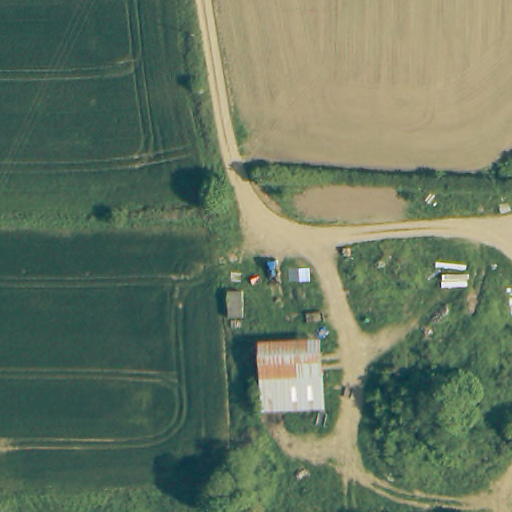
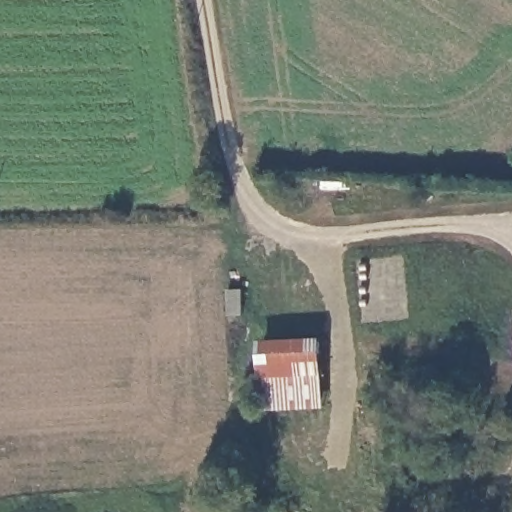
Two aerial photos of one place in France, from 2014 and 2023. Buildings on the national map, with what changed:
unchanged [(317,336),(325,405),(266,412),(259,342),(317,336)]

